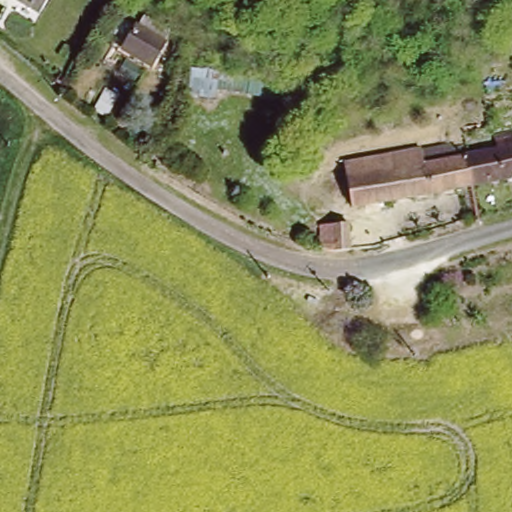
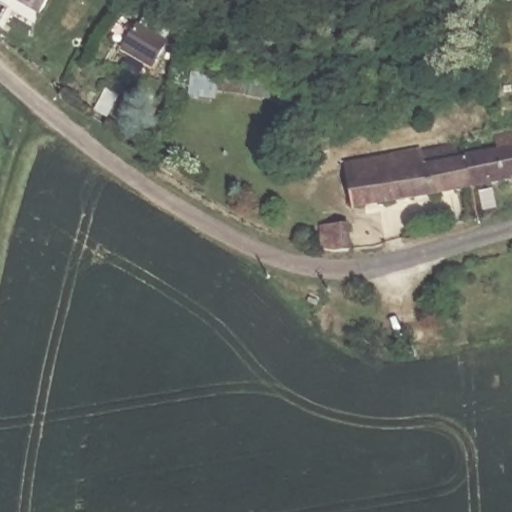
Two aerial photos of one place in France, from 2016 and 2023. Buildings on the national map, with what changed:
unchanged [(48,0),(40,13),(18,0),(48,0)]
unchanged [(171,25),(168,49),(136,44),(138,20),(171,25)]
unchanged [(211,67),(274,84),(273,101),(204,88),(211,67)]
unchanged [(466,157),(485,153),(482,140),(512,133),(512,183),(474,192),(466,157)]
unchanged [(354,215),(348,185),(416,172),(413,154),(453,146),(454,151),(464,149),(466,157),(474,192),(354,215)]
unchanged [(413,154),(416,172),(348,185),(344,166),(413,154)]
unchanged [(353,249),(326,249),(329,226),(355,227),(353,249)]

